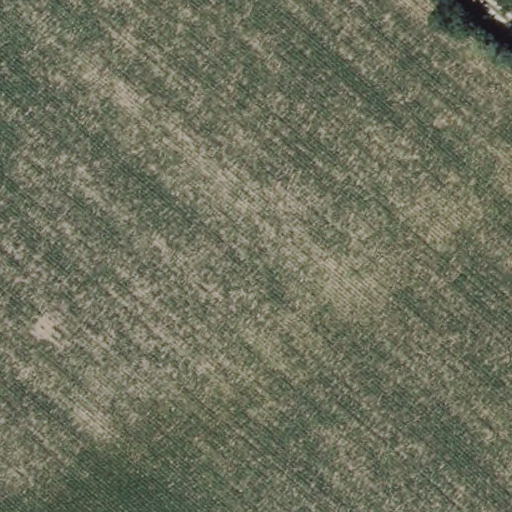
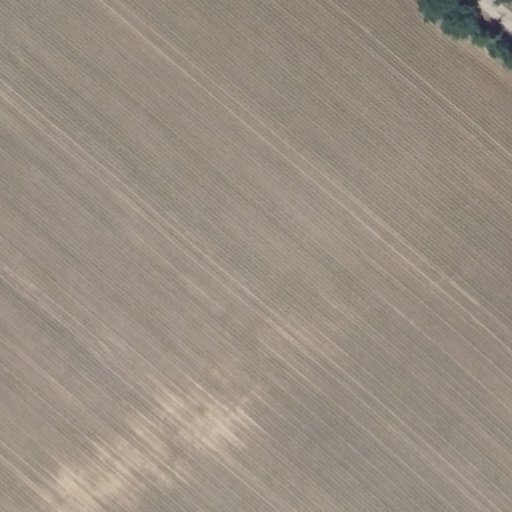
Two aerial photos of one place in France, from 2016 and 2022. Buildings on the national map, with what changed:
[]

